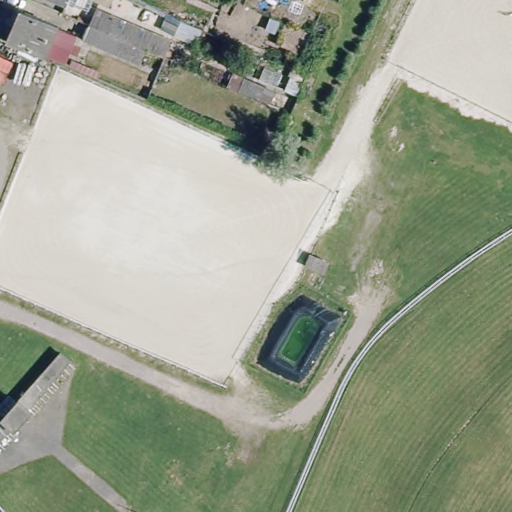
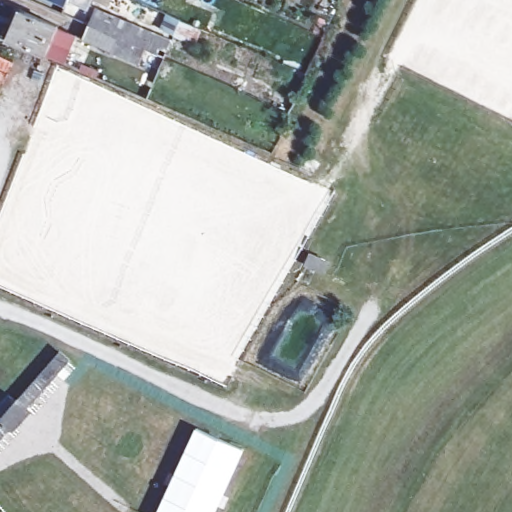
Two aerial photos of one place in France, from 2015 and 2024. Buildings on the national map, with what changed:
unchanged [(117,8),(156,27),(148,42),(142,57),(86,32),(93,17),(110,25),(117,8)]
unchanged [(20,10),(57,26),(56,31),(75,40),(63,67),(6,41),(20,10)]
unchanged [(172,39),(164,36),(170,22),(179,25),(172,39)]
unchanged [(313,246),(328,252),(324,262),(309,257),(313,246)]
unchanged [(6,411),(0,405),(0,397),(10,387),(19,396),(62,349),(70,357),(29,402),(32,406),(15,424),(12,422),(0,435),(0,417),(6,411)]
demolished [(221,417),(259,456),(214,511),(162,474),(221,417)]
new [(216,512),(157,512),(196,428),(245,450),(216,512)]

